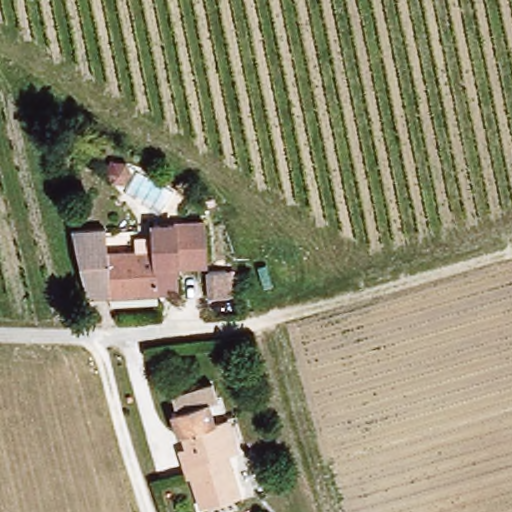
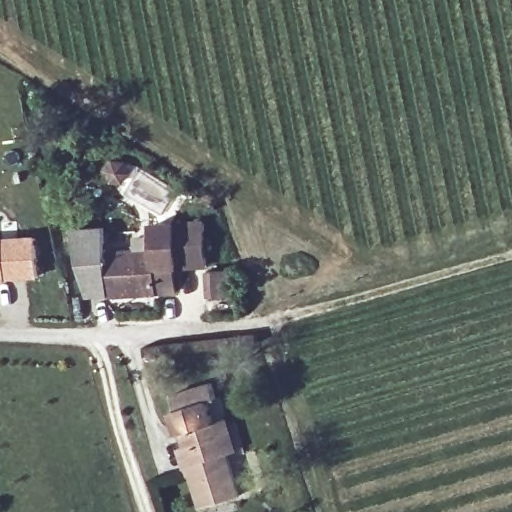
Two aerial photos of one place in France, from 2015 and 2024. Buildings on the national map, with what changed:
unchanged [(124,153),(135,155),(137,164),(131,172),(122,170),(119,160),(124,153)]
unchanged [(91,297),(75,224),(108,225),(107,254),(133,256),(142,297),(91,297)]
unchanged [(133,256),(137,257),(138,239),(156,241),(156,229),(208,232),(208,272),(165,273),(162,297),(142,297),(133,256)]
new [(11,272),(12,273),(0,274),(0,234),(9,234),(23,233),(38,232),(41,269),(11,272)]
unchanged [(232,277),(234,302),(213,303),(213,276),(232,277)]
unchanged [(240,512),(202,512),(188,464),(193,464),(178,413),(220,399),(227,420),(215,424),(221,438),(231,436),(242,465),(231,469),(245,510),(240,512)]

